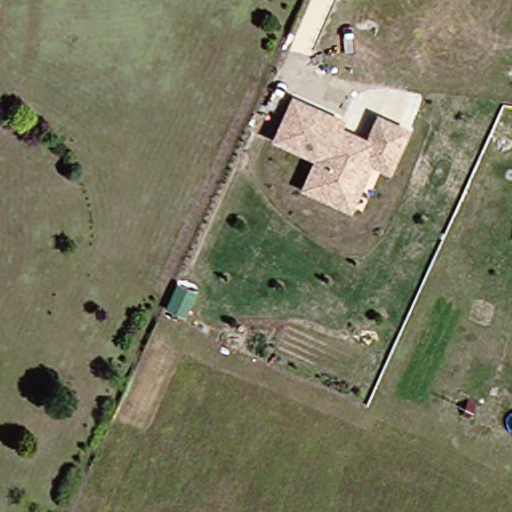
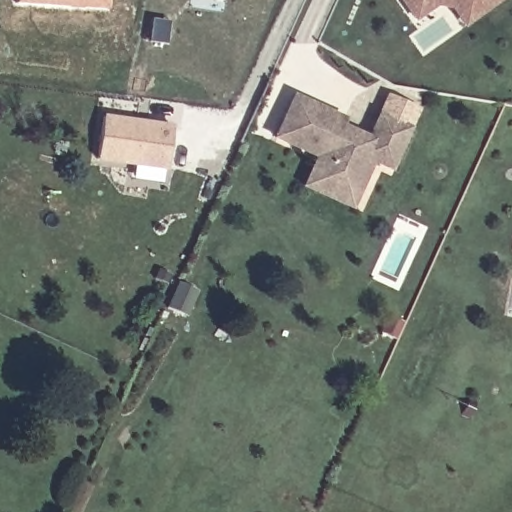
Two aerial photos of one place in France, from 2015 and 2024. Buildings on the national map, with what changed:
new [(17,0),(107,0),(107,9),(17,4),(17,0)]
new [(452,10),(438,9),(417,25),(398,0),(506,0),(465,30),(452,10)]
unchanged [(275,134),(274,134),(291,96),(292,93),(311,102),(342,116),(339,122),(343,125),(355,130),(367,136),(378,112),(407,125),(389,166),(388,165),(371,157),(356,190),(321,174),(328,158),(275,134)]
new [(132,180),(134,167),(99,162),(106,115),(171,124),(163,184),(132,180)]
unchanged [(328,158),(321,174),(356,190),(371,157),(388,165),(386,171),(380,168),(361,209),(303,182),(314,157),(273,138),(275,134),(328,158)]

